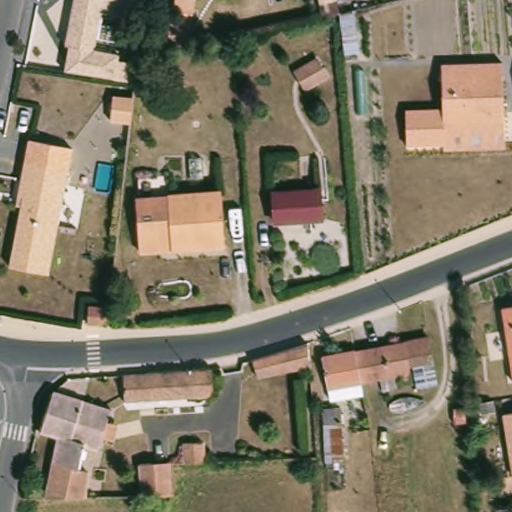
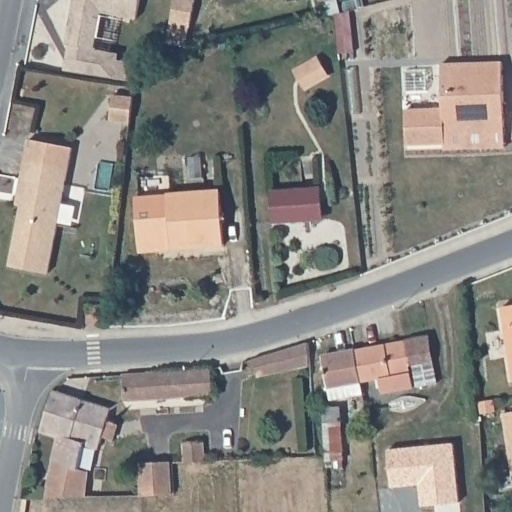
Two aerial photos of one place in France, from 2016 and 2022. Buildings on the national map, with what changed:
unchanged [(141,17),(106,10),(98,48),(71,42),(79,0),(145,0),(141,17)]
new [(175,0),(194,0),(189,26),(170,22),(175,0)]
unchanged [(318,0),(336,0),(336,4),(319,8),(318,0)]
unchanged [(67,72),(71,42),(98,48),(97,52),(118,54),(115,78),(67,72)]
unchanged [(447,127),(448,137),(413,138),(412,108),(447,107),(445,62),(506,60),(508,125),(447,127)]
unchanged [(448,147),(413,148),(413,138),(448,137),(447,127),(508,125),(509,145),(448,147)]
unchanged [(15,265),(28,195),(24,194),(31,159),(35,138),(78,146),(74,167),(53,272),(15,265)]
unchanged [(319,189),(321,214),(274,218),(272,192),(319,189)]
unchanged [(139,254),(136,215),(169,213),(167,198),(220,194),(224,248),(203,249),(160,252),(139,254)]
unchanged [(107,310),(106,328),(87,327),(88,308),(107,310)]
unchanged [(512,309),(512,382),(501,311),(512,309)]
unchanged [(434,335),(437,359),(414,363),(417,380),(405,382),(405,384),(388,388),(386,376),(364,380),(359,349),(409,341),(434,335)]
unchanged [(252,363),(308,346),(309,369),(258,384),(252,363)]
unchanged [(364,380),(367,391),(336,397),(333,386),(327,355),(359,349),(364,380)]
unchanged [(213,390),(209,395),(125,401),(123,374),(211,368),(213,390)]
unchanged [(111,408),(98,447),(83,443),(76,468),(89,472),(82,496),(67,496),(42,496),(51,460),(58,435),(40,429),(53,390),(111,408)]
unchanged [(347,458),(337,459),(338,465),(330,465),(330,458),(327,406),(345,405),(347,458)]
unchanged [(512,475),(502,417),(512,415),(512,475)]
unchanged [(211,439),(212,458),(192,459),(191,440),(211,439)]
new [(421,499),(420,485),(392,488),(388,451),(454,444),(459,503),(427,506),(422,507),(421,499)]
unchanged [(177,459),(179,491),(149,492),(147,461),(177,459)]

